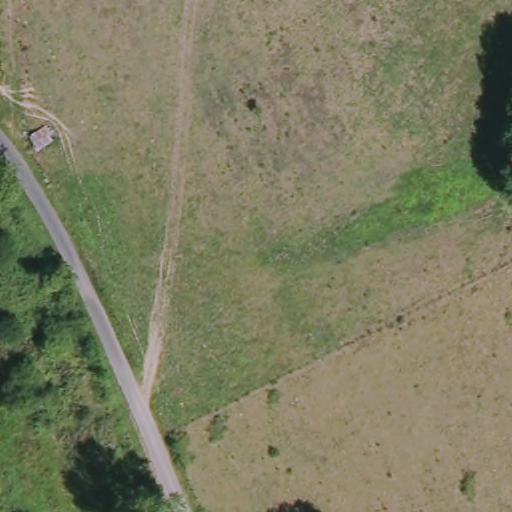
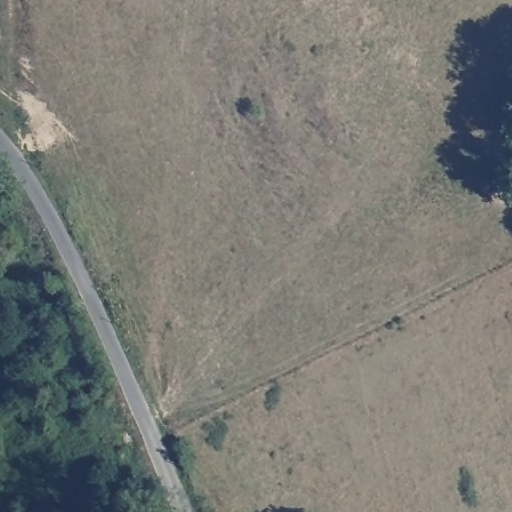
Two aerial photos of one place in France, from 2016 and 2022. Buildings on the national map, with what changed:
unchanged [(35,152),(28,141),(49,126),(57,136),(35,152)]

